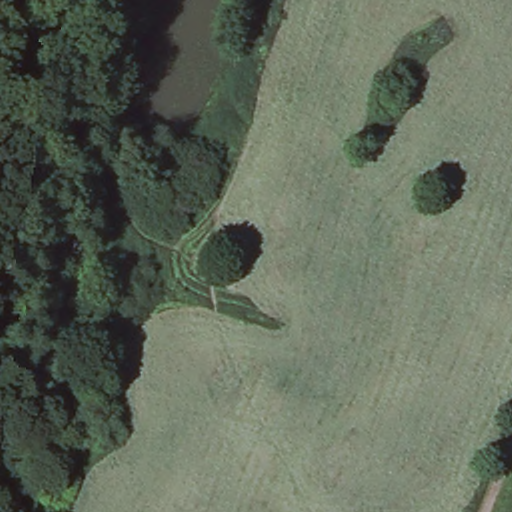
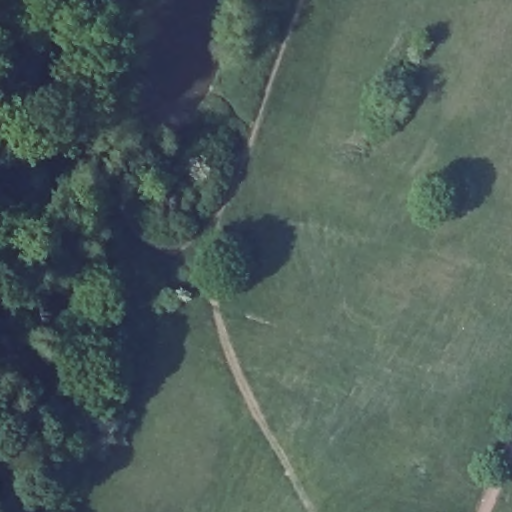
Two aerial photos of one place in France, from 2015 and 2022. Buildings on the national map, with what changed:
[]

